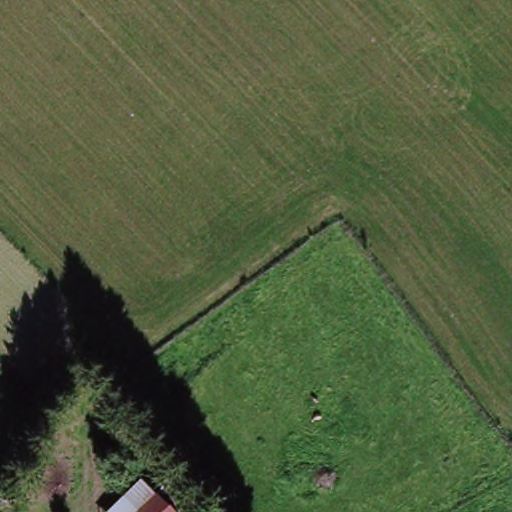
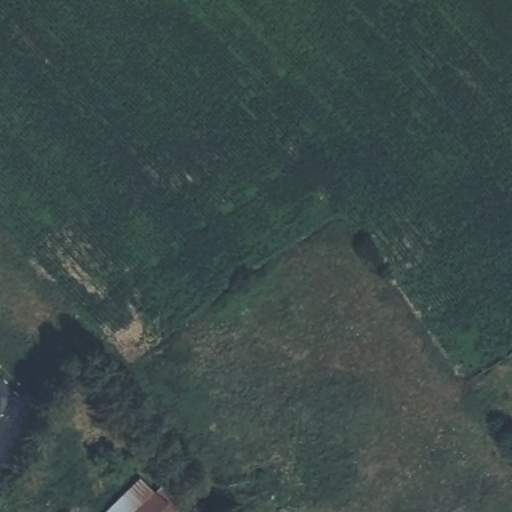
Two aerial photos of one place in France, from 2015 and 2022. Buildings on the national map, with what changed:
unchanged [(177,512),(103,512),(138,477),(177,512)]

